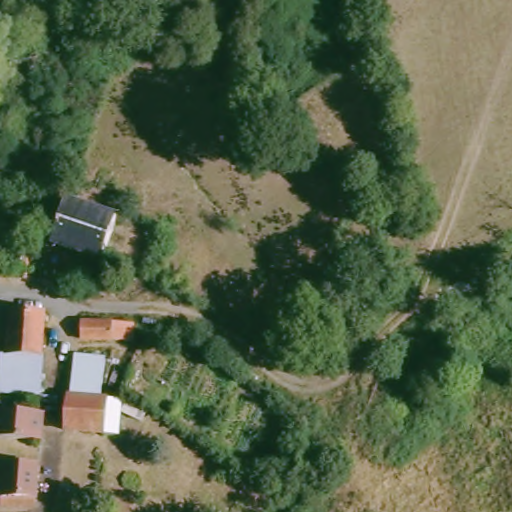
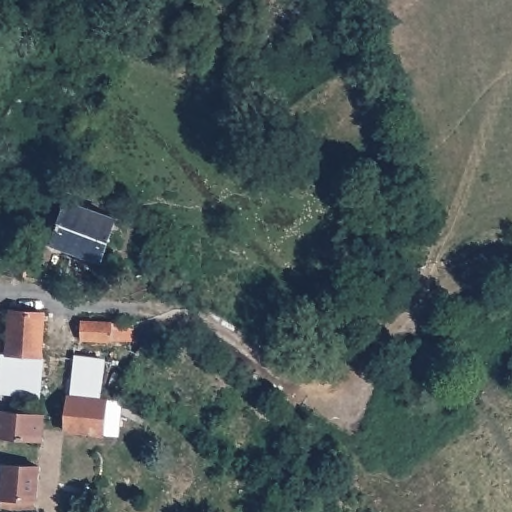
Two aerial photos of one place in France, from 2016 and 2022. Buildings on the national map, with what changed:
unchanged [(110,216),(97,261),(50,247),(62,202),(110,216)]
unchanged [(40,356),(2,355),(5,312),(42,313),(40,356)]
unchanged [(131,339),(80,339),(81,325),(130,325),(131,339)]
unchanged [(40,356),(36,401),(0,400),(0,354),(2,355),(40,356)]
unchanged [(71,358),(103,360),(102,399),(69,397),(71,358)]
unchanged [(106,400),(99,435),(62,433),(65,402),(65,396),(69,397),(102,399),(106,400)]
unchanged [(39,417),(37,445),(0,440),(0,415),(39,417)]
unchanged [(35,468),(33,494),(28,493),(27,505),(0,501),(0,464),(35,468)]

